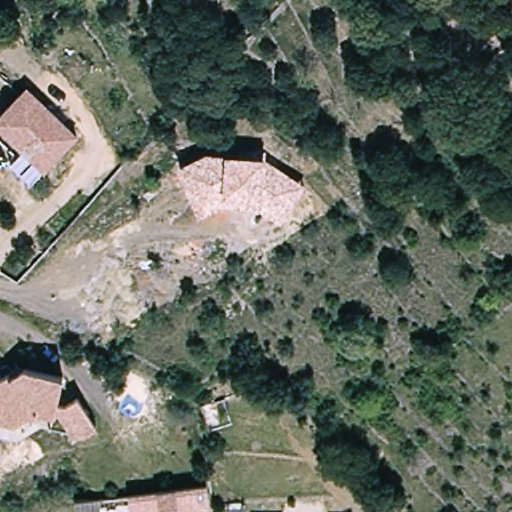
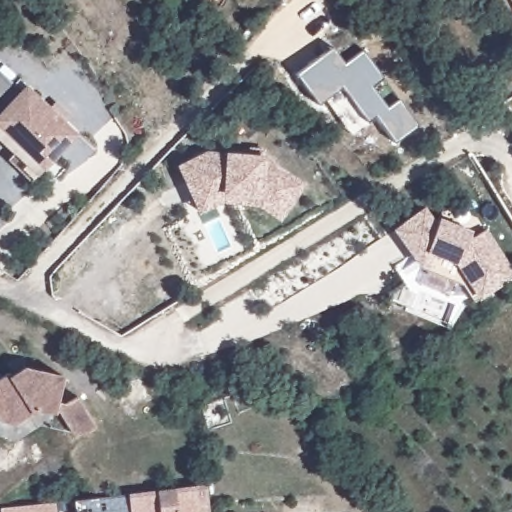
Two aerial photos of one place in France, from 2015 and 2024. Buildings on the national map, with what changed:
new [(326,100),(320,105),(296,75),(334,46),(346,62),(362,50),(384,77),(372,86),(388,106),(399,100),(414,124),(394,140),(375,116),(353,134),(326,100)]
unchanged [(16,155),(22,150),(0,130),(0,120),(1,119),(32,85),(83,130),(52,164),(40,177),(16,155)]
unchanged [(207,151),(268,159),(306,184),(280,222),(260,208),(225,202),(200,215),(179,164),(207,151)]
new [(437,227),(445,205),(478,219),(512,270),(512,277),(475,301),(465,285),(425,270),(396,231),(425,210),(437,227)]
unchanged [(22,366),(23,370),(38,365),(74,383),(62,407),(70,411),(83,407),(93,441),(77,446),(67,440),(60,416),(56,418),(41,410),(15,418),(1,410),(0,406),(0,373),(22,366)]
unchanged [(40,425),(12,433),(0,427),(0,406),(1,410),(15,418),(41,410),(56,418),(60,416),(67,440),(40,425)]
unchanged [(139,495),(213,484),(217,512),(137,512),(135,495),(139,495)]
new [(1,508),(55,502),(57,512),(2,512),(1,508)]
unchanged [(105,505),(126,502),(128,512),(86,512),(85,508),(105,505)]

